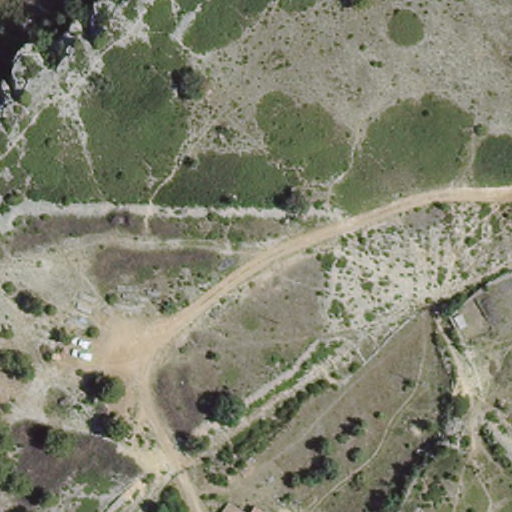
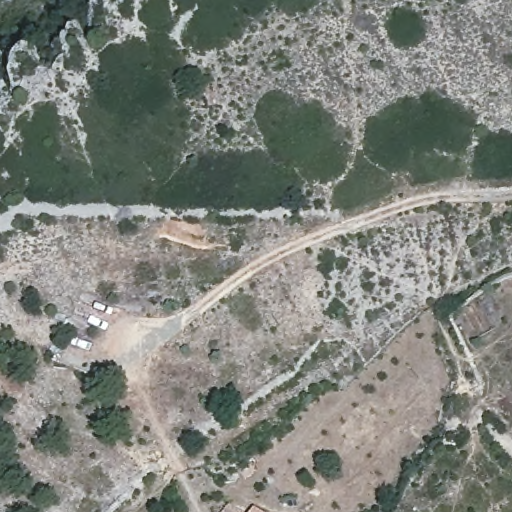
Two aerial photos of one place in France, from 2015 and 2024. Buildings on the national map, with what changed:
unchanged [(253,500),(269,508),(266,512),(246,512),(253,500)]

